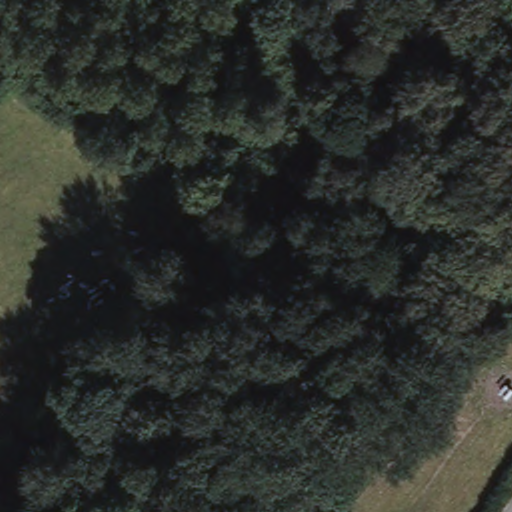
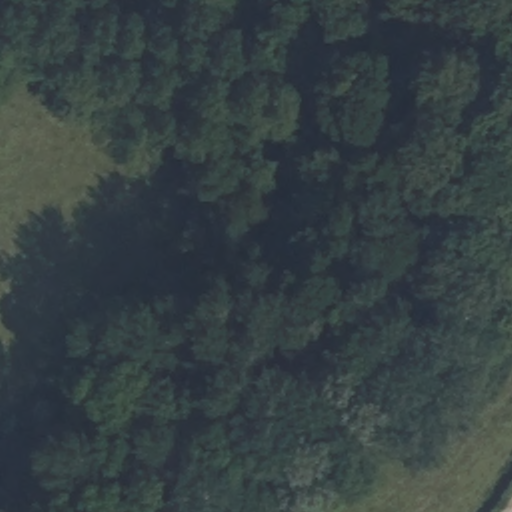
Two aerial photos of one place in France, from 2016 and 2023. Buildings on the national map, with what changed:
[]

